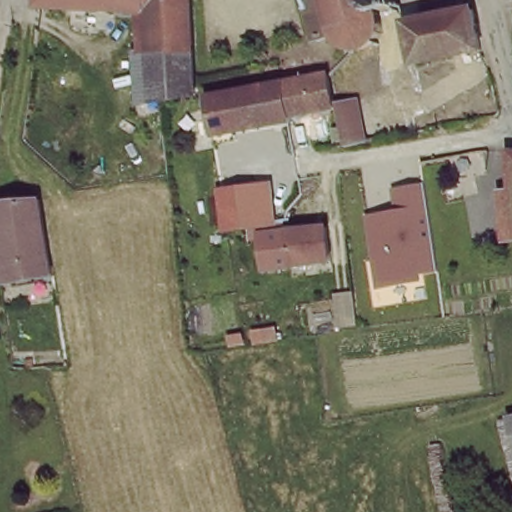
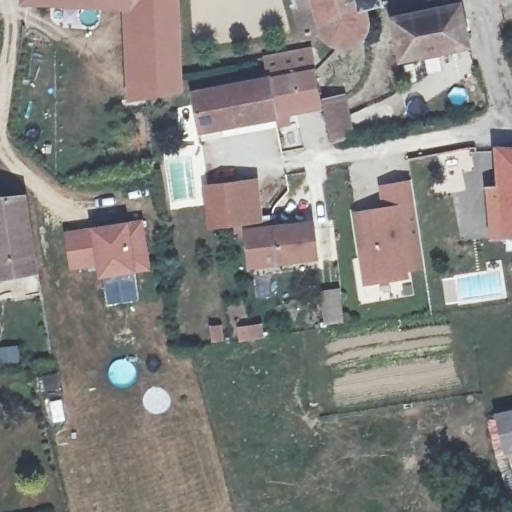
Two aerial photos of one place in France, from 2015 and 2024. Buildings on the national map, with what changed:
unchanged [(133,4),(70,0),(175,0),(176,8),(177,32),(178,47),(136,42),(135,23),(133,4)]
unchanged [(365,9),(367,16),(368,19),(369,22),(369,25),(368,28),(368,31),(366,34),(364,37),(362,40),(360,42),(357,45),(355,46),(351,47),(348,47),(344,47),(341,47),(336,45),(333,42),(329,40),(327,36),(326,32),(319,34),(304,38),(292,0),(382,0),(383,4),(365,9)]
unchanged [(397,42),(392,21),(457,6),(457,5),(466,45),(400,58),(397,42)]
unchanged [(178,47),(179,55),(180,70),(180,87),(141,92),(138,62),(136,42),(178,47)]
unchanged [(275,112),(276,117),(274,117),(200,127),(193,92),(267,79),(306,72),(312,70),(319,102),(275,112)]
unchanged [(322,100),(342,95),(352,140),(332,144),(322,102),(322,100)]
unchanged [(505,251),(503,236),(499,196),(493,149),(512,150),(512,250),(505,251)]
unchanged [(382,209),(380,185),(413,181),(429,277),(361,284),(353,212),(382,209)]
unchanged [(241,223),(212,227),(206,189),(224,187),(225,185),(251,182),(255,221),(241,223)]
unchanged [(0,197),(13,196),(19,196),(31,272),(0,277),(0,197)]
unchanged [(255,221),(274,219),(275,227),(310,224),(316,258),(246,266),(241,223),(255,221)]
new [(66,232),(143,220),(152,270),(100,278),(99,267),(70,271),(66,232)]
unchanged [(505,456),(495,417),(509,414),(512,413),(512,454),(505,456)]

